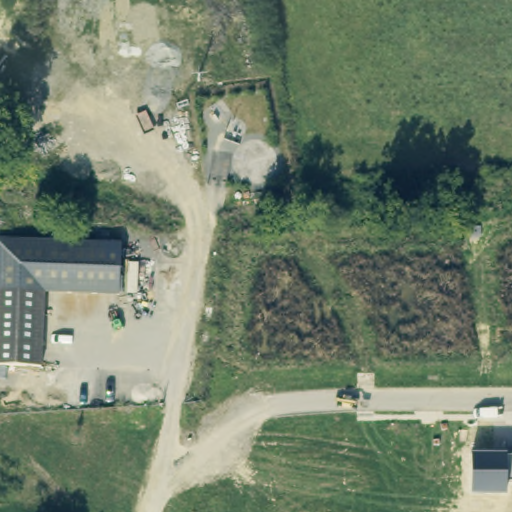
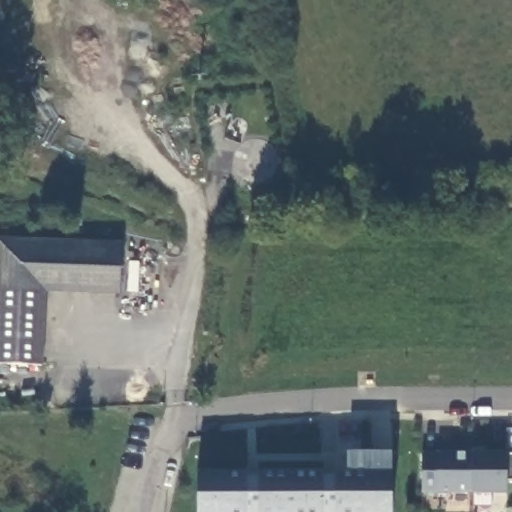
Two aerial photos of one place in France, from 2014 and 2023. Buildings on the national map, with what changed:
unchanged [(69,240),(116,241),(115,290),(71,290),(44,288),(40,360),(0,359),(0,239),(32,239),(69,240)]
new [(346,473),(347,452),(392,453),(392,512),(197,512),(195,473),(346,473)]
unchanged [(421,453),(471,453),(471,495),(422,493),(421,453)]
unchanged [(506,482),(506,495),(471,495),(471,453),(505,453),(512,454),(512,482),(506,482)]

